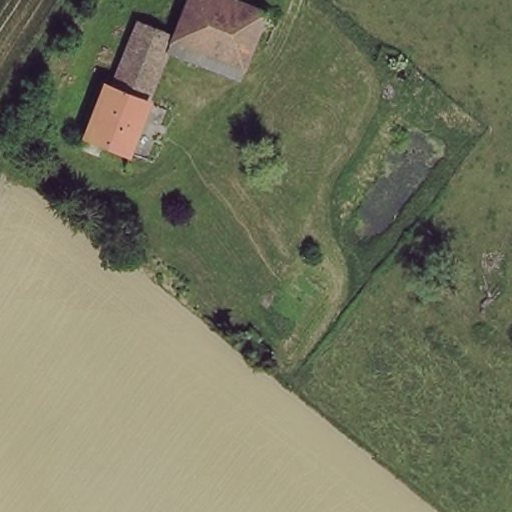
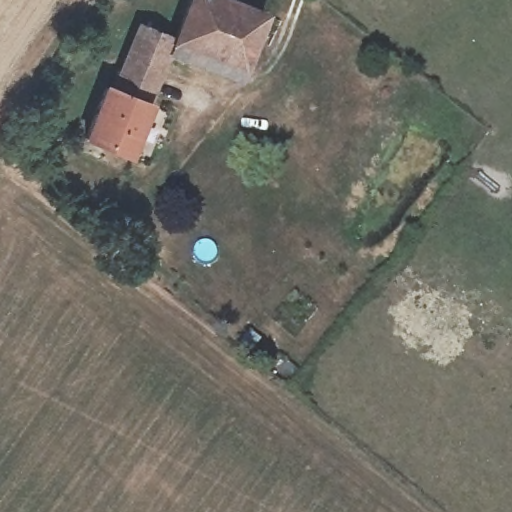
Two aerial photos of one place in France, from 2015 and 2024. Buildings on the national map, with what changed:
unchanged [(193,0),(242,0),(267,9),(246,63),(178,36),(180,32),(193,0)]
unchanged [(131,147),(146,155),(141,168),(101,150),(105,138),(89,130),(92,123),(111,78),(120,81),(147,20),(180,32),(178,36),(131,147)]

